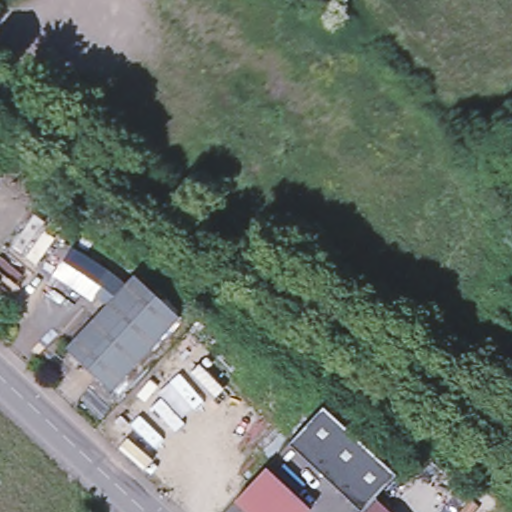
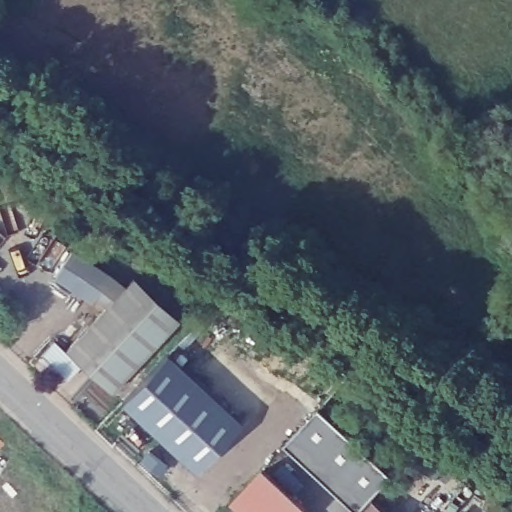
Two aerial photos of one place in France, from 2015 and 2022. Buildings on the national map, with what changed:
unchanged [(129,280),(108,303),(92,295),(91,298),(53,275),(71,244),(129,280)]
unchanged [(93,320),(108,303),(129,280),(135,275),(143,283),(144,283),(179,316),(111,390),(66,348),(93,320)]
new [(169,356),(243,425),(198,474),(124,406),(169,356)]
unchanged [(326,409),(400,475),(378,499),(366,512),(364,512),(291,447),(299,439),(326,409)]
unchanged [(252,485),(264,471),(307,512),(245,512),(235,502),(237,500),(239,498),(252,485)]
unchanged [(366,512),(378,499),(392,512),(366,512)]

